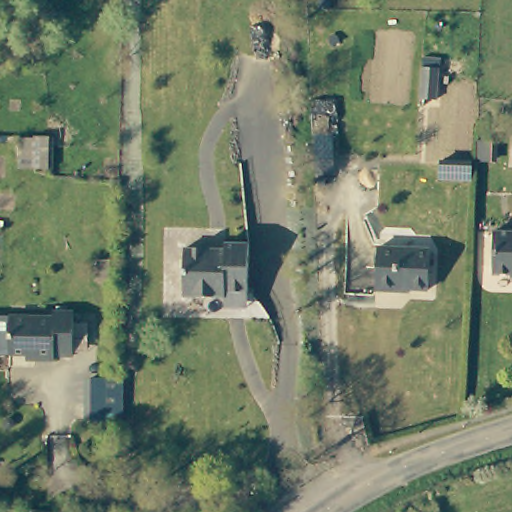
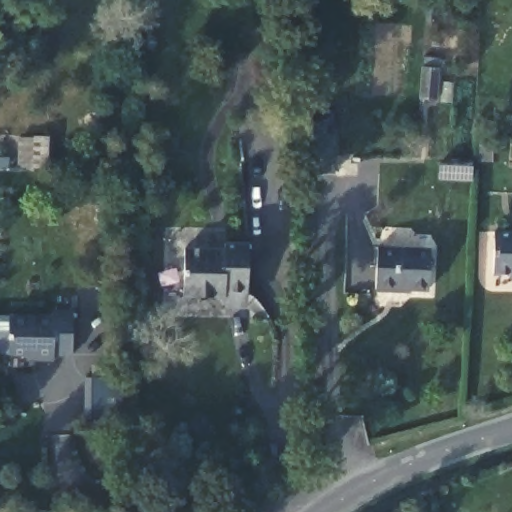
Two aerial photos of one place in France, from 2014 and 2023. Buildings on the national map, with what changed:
unchanged [(494,272),(493,230),(512,230),(512,272),(494,272)]
unchanged [(228,308),(228,290),(227,298),(185,297),(187,249),(228,250),(228,245),(250,245),(249,291),(249,308),(228,308)]
unchanged [(373,247),(428,248),(426,289),(372,289),(373,247)]
unchanged [(55,355),(55,358),(33,358),(32,355),(0,355),(0,318),(54,320),(54,315),(72,316),(71,355),(55,355)]

